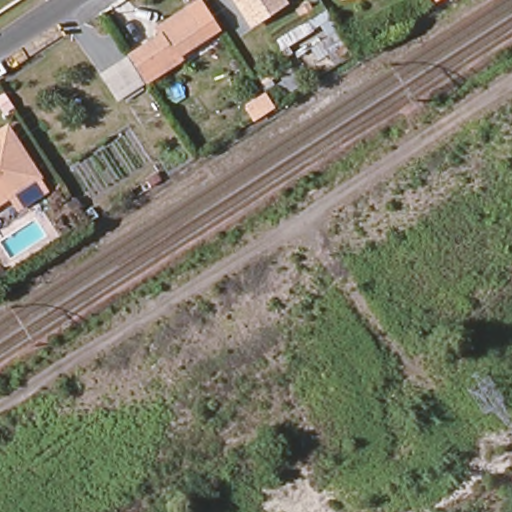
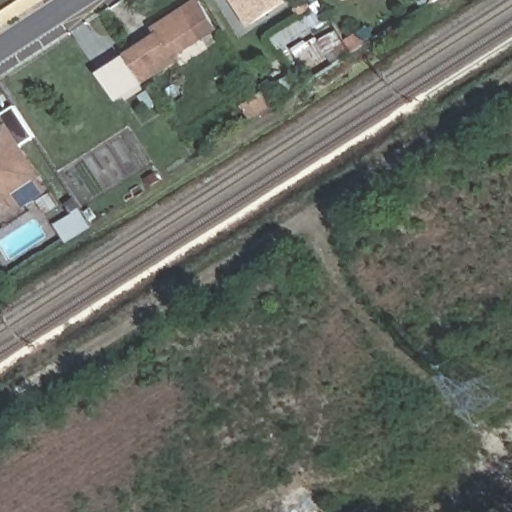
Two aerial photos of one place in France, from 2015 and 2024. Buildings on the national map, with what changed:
unchanged [(284,2),(250,24),(234,0),(282,0),(284,2)]
unchanged [(129,55),(159,36),(155,29),(199,1),(216,28),(202,37),(202,39),(174,58),(176,61),(146,81),(129,55)]
unchanged [(100,74),(126,58),(142,83),(116,99),(100,74)]
unchanged [(18,208),(8,193),(0,199),(0,133),(5,130),(45,191),(18,208)]

